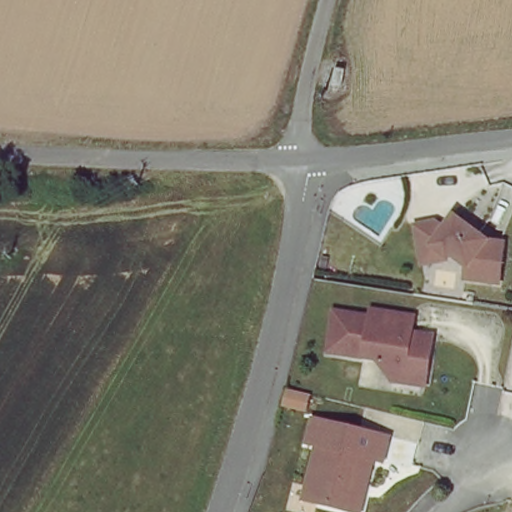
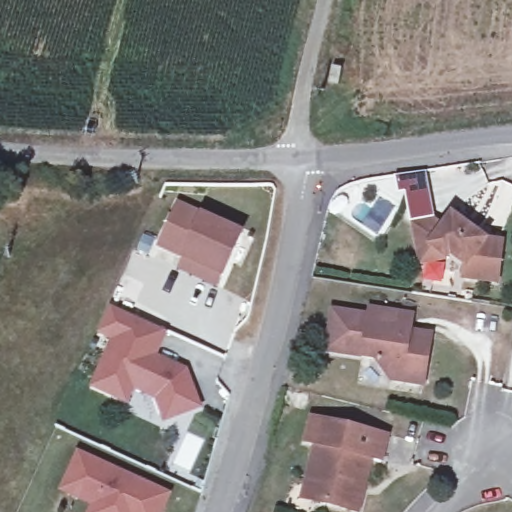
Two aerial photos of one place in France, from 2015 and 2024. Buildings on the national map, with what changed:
new [(172,268),(179,257),(155,245),(177,199),(242,231),(220,277),(214,289),(172,268)]
unchanged [(412,245),(408,222),(429,219),(438,226),(447,213),(480,238),(496,240),(492,279),(459,275),(461,263),(444,250),(442,254),(414,258),(412,245)]
new [(118,336),(102,329),(115,303),(170,330),(158,354),(176,363),(173,370),(180,373),(189,369),(202,406),(167,418),(160,396),(136,384),(129,399),(95,383),(118,336)]
unchanged [(385,376),(370,354),(321,345),(328,306),(364,312),(365,305),(407,313),(405,328),(426,332),(424,339),(419,370),(417,382),(385,376)]
unchanged [(380,433),(374,457),(365,454),(352,508),(297,494),(310,441),(300,439),(306,415),(380,433)]
new [(161,512),(106,512),(107,509),(62,487),(80,451),(169,494),(161,512)]

